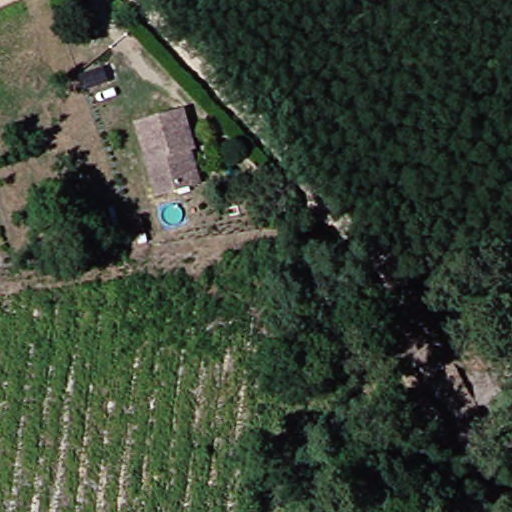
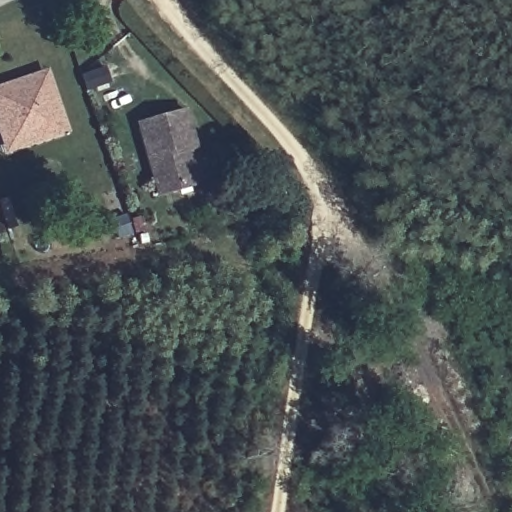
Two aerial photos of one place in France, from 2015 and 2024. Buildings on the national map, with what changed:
new [(48,68),(69,133),(5,154),(0,139),(0,84),(48,68)]
unchanged [(186,180),(145,193),(125,129),(176,112),(185,144),(196,175),(186,180)]

